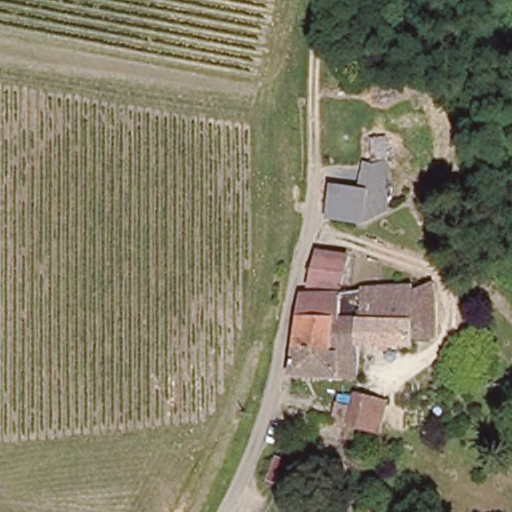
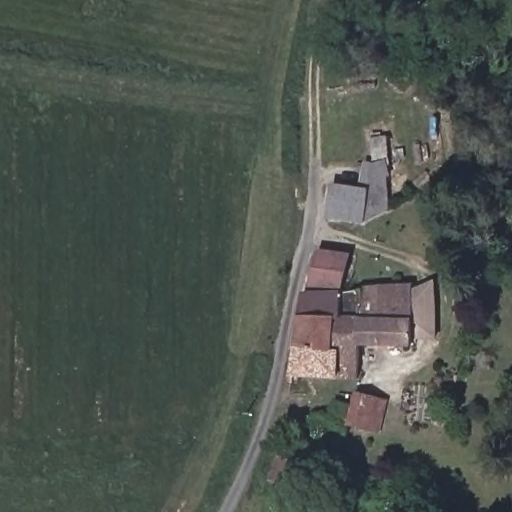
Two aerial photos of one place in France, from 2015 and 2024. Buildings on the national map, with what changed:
unchanged [(335,216),(340,184),(371,188),(366,222),(335,216)]
unchanged [(317,252),(344,255),(339,285),(312,283),(317,252)]
unchanged [(338,291),(381,289),(416,287),(416,295),(435,287),(437,340),(414,340),(413,348),(353,345),(354,378),(289,374),(294,346),(303,293),(338,291)]
unchanged [(352,427),(361,398),(379,404),(389,407),(381,434),(372,432),(352,427)]
unchanged [(334,418),(338,406),(352,410),(349,420),(349,423),(334,418)]
unchanged [(296,491),(267,482),(278,455),(306,466),(296,491)]

